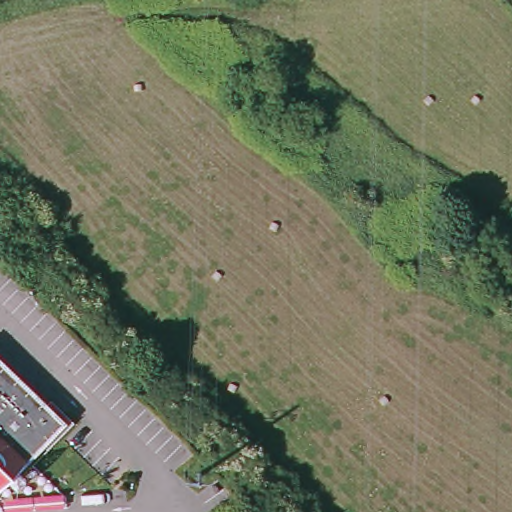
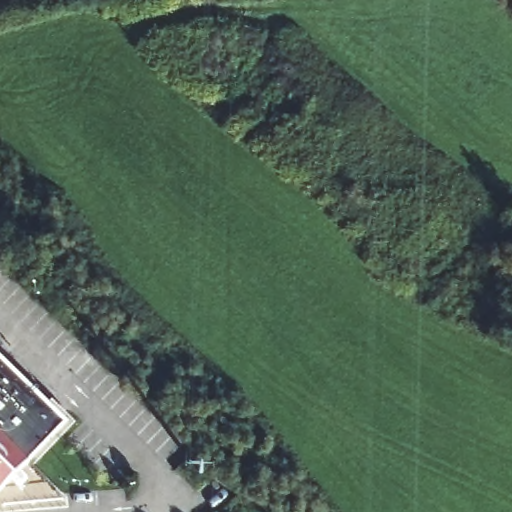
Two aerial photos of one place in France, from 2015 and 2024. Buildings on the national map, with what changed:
unchanged [(65,421),(0,488),(0,359),(65,421)]

